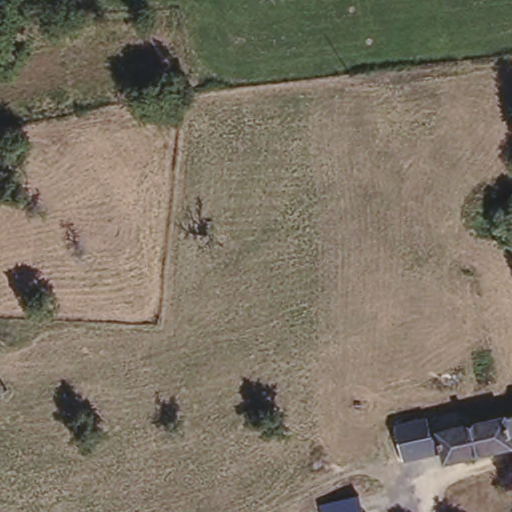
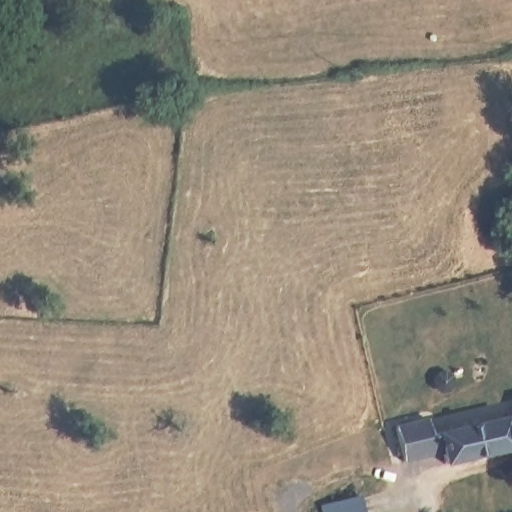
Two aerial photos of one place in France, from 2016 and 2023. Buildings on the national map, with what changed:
unchanged [(447,462),(445,450),(405,457),(397,420),(438,413),(440,427),(512,413),(512,449),(447,462)]

